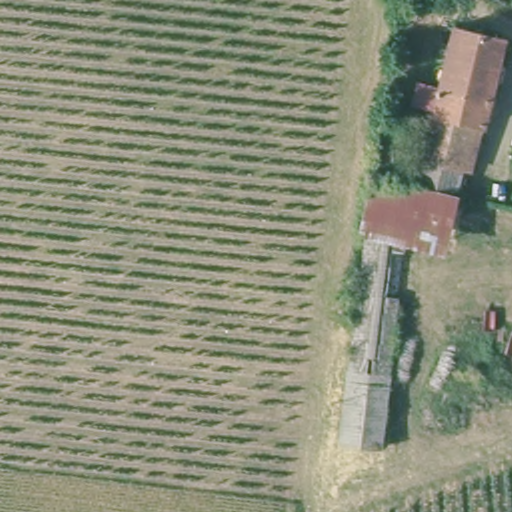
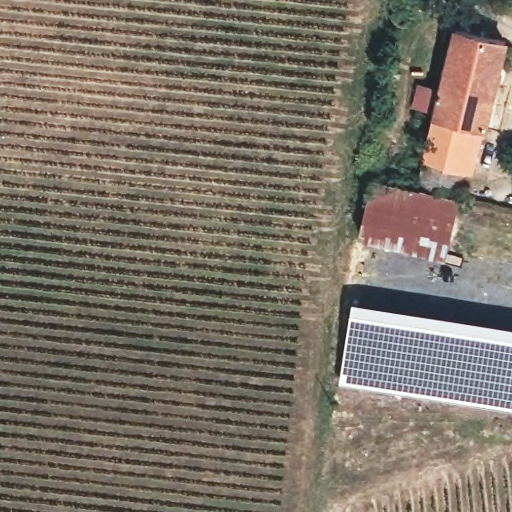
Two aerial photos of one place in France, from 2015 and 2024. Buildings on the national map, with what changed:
unchanged [(396,90),(417,91),(424,27),(479,31),(471,121),(414,119),(415,111),(394,110),(396,90)]
unchanged [(407,180),(410,160),(414,119),(471,121),(467,165),(454,164),(453,184),(407,180)]
unchanged [(442,235),(402,234),(364,231),(356,231),(358,185),(447,191),(442,235)]
demolished [(358,286),(364,231),(402,234),(398,290),(358,286)]
demolished [(386,446),(342,442),(358,286),(398,290),(386,446)]
new [(350,309),(352,299),(512,324),(512,407),(339,380),(350,309)]

